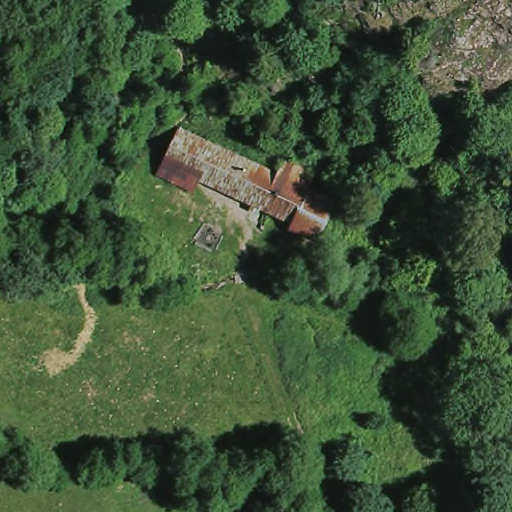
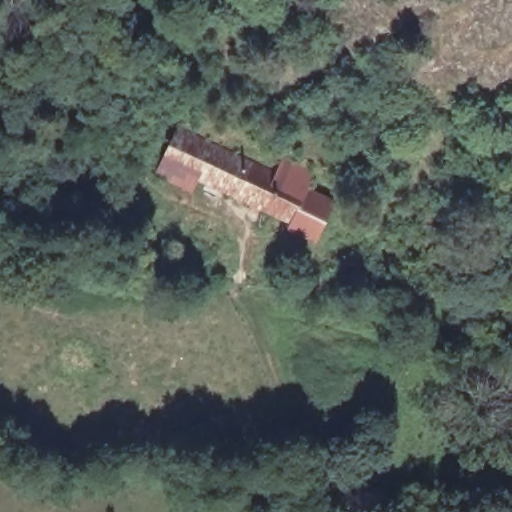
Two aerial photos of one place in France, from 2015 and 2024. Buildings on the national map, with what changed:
unchanged [(157,170),(173,135),(267,176),(275,160),(307,169),(300,189),(332,209),(316,239),(266,217),(157,170)]

